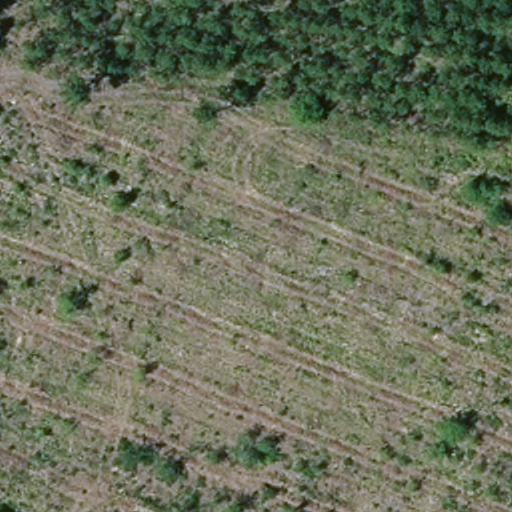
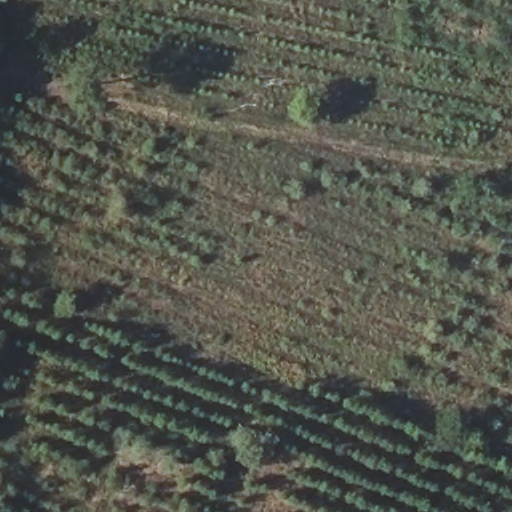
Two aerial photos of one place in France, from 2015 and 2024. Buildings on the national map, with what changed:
[]

